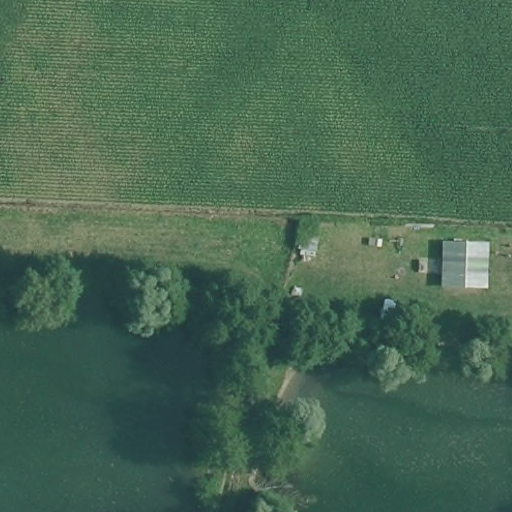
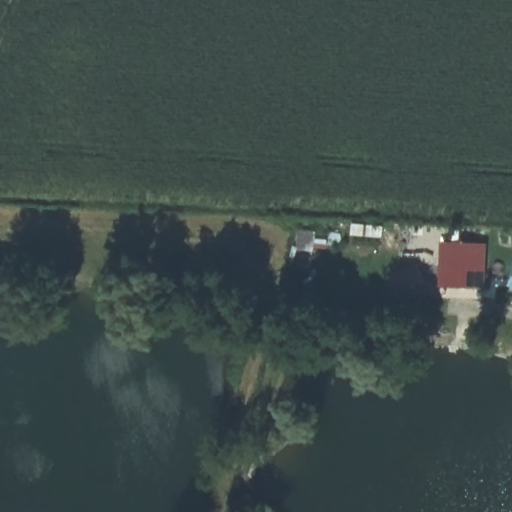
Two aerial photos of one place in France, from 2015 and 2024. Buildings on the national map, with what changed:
unchanged [(486,289),(438,288),(440,240),(489,241),(486,289)]

